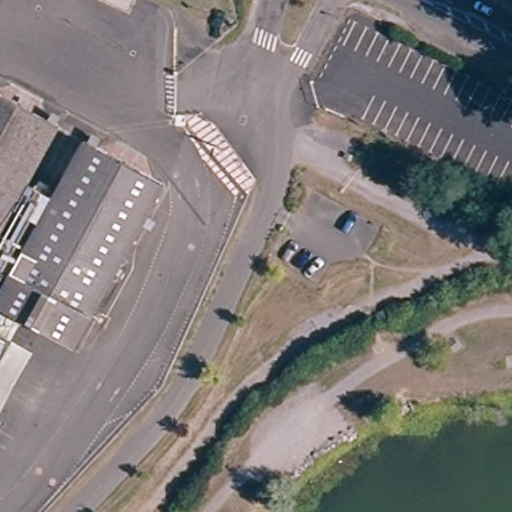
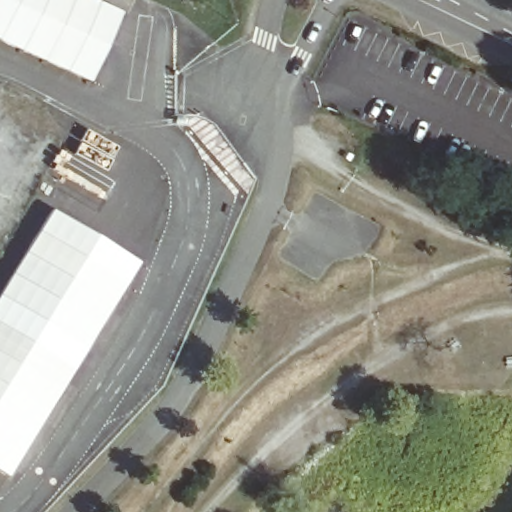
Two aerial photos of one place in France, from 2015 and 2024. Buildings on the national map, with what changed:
new [(92,83),(0,42),(0,0),(98,0),(124,12),(92,83)]
demolished [(0,93),(64,129),(0,245),(0,93)]
demolished [(82,345),(4,302),(92,144),(170,188),(82,345)]
new [(52,209),(141,263),(9,477),(0,472),(0,290),(17,263),(52,209)]

